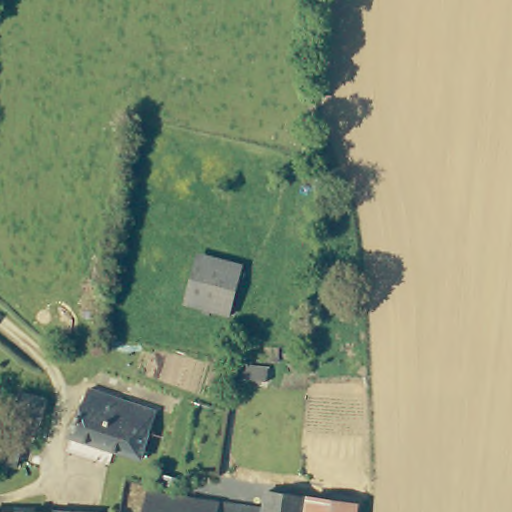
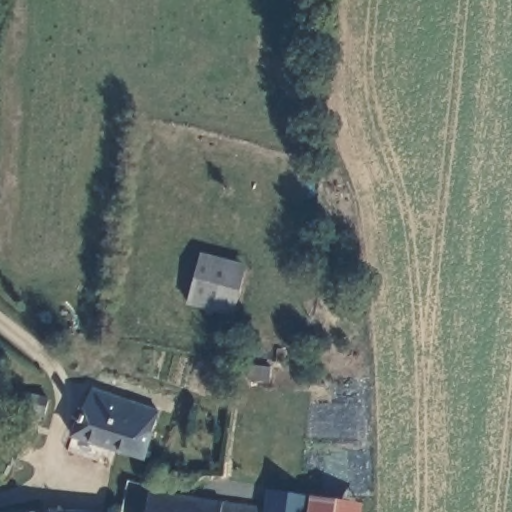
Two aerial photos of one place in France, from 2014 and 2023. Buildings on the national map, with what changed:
unchanged [(188,298),(200,254),(244,266),(232,310),(188,298)]
unchanged [(22,387),(49,395),(45,412),(18,403),(22,387)]
unchanged [(91,389),(159,411),(144,460),(72,437),(91,389)]
unchanged [(30,412),(24,438),(11,436),(17,410),(30,412)]
unchanged [(23,441),(18,462),(5,457),(9,437),(23,441)]
unchanged [(184,480),(182,487),(159,481),(161,473),(184,480)]
unchanged [(266,508),(269,509),(269,512),(146,512),(150,491),(266,508)]
unchanged [(269,491),(309,497),(307,512),(269,512),(269,509),(266,508),(269,491)]
unchanged [(359,512),(310,512),(311,498),(360,505),(359,512)]

